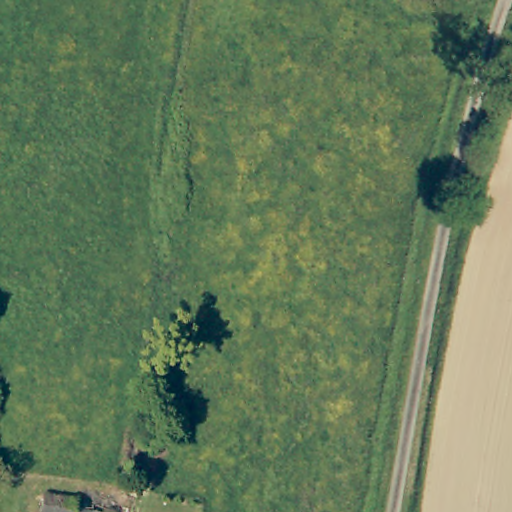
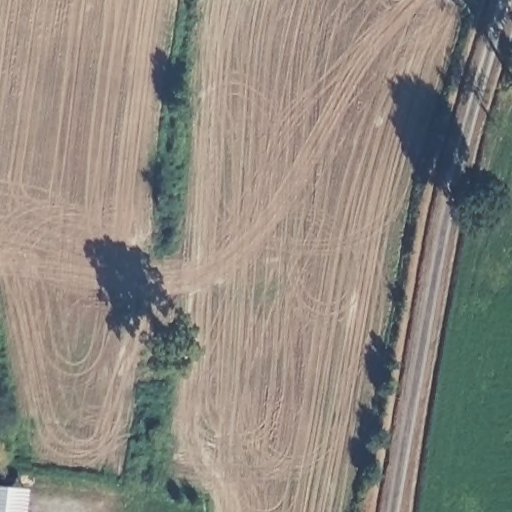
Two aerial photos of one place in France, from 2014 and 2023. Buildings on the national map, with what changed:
new [(28,490),(26,512),(0,512),(0,487),(28,490)]

